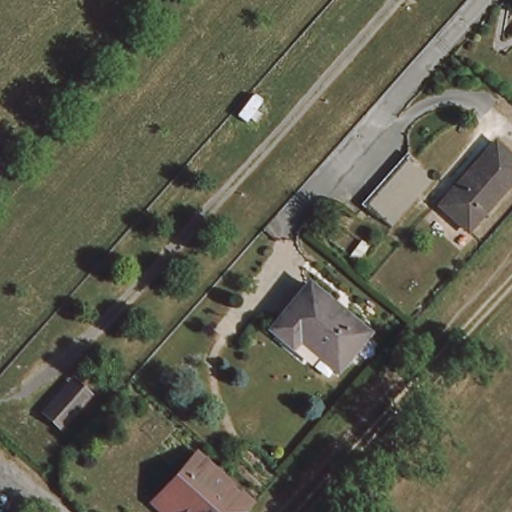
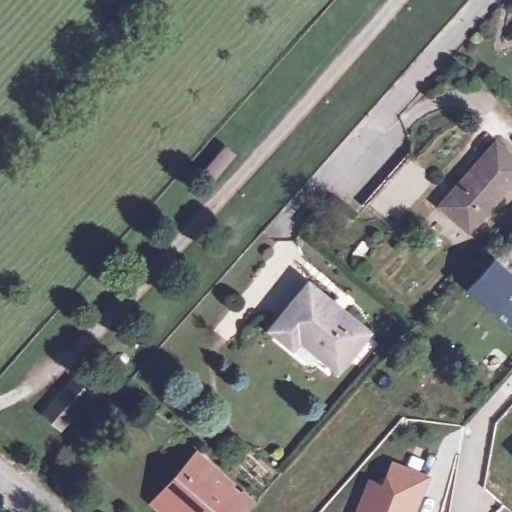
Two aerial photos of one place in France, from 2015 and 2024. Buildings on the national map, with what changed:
unchanged [(512,187),(472,234),(440,205),(495,143),(512,158),(512,187)]
unchanged [(363,203),(375,189),(407,155),(433,179),(402,214),(390,227),(363,203)]
new [(512,326),(490,307),(497,300),(479,286),(501,263),(512,273),(512,326)]
unchanged [(286,344),(266,327),(303,282),(363,332),(333,368),(315,353),(293,334),(286,344)]
unchanged [(43,416),(68,388),(74,382),(90,395),(84,402),(59,430),(43,416)]
unchanged [(157,504),(162,498),(155,491),(178,466),(193,449),(247,499),(235,512),(166,512),(157,504)]
new [(369,486),(382,492),(391,468),(424,481),(412,512),(359,512),(369,486)]

